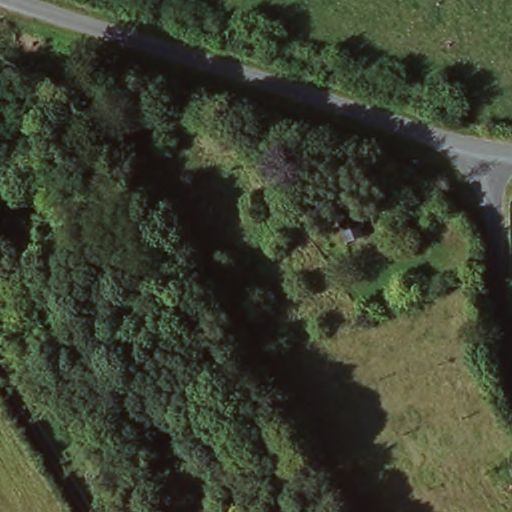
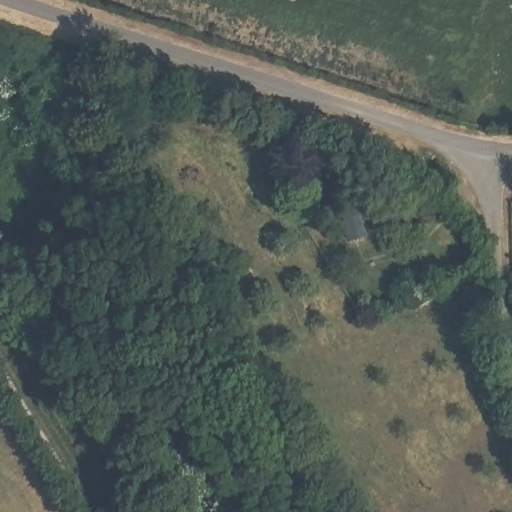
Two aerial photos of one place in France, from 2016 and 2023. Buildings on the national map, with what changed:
unchanged [(369,233),(349,240),(338,198),(354,191),(369,233)]

